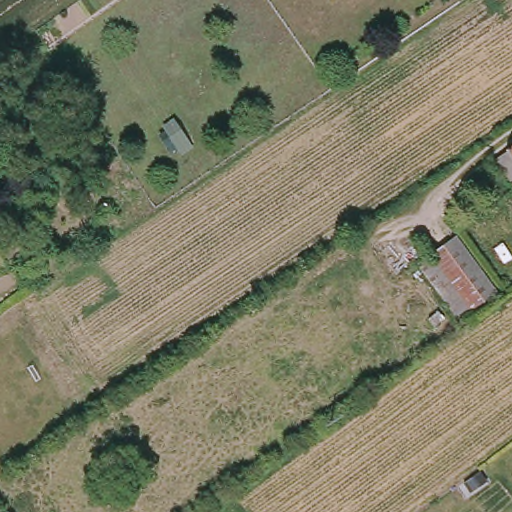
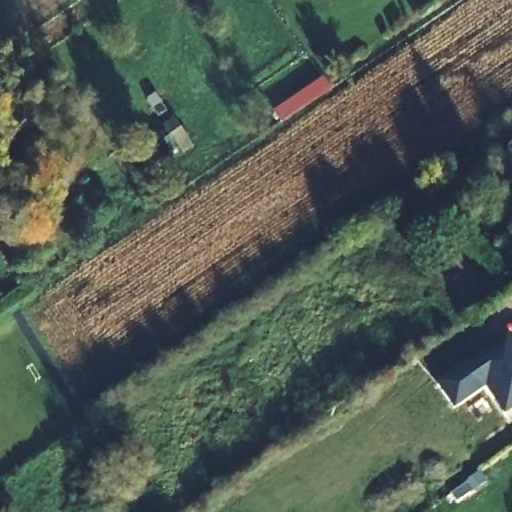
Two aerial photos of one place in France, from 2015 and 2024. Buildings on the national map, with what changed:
unchanged [(430,255),(456,237),(495,294),(470,313),(430,255)]
new [(512,344),(512,410),(503,417),(485,388),(453,409),(435,383),(505,334),(512,344)]

